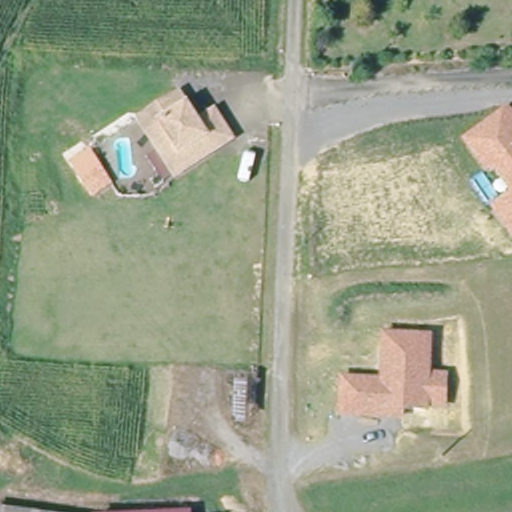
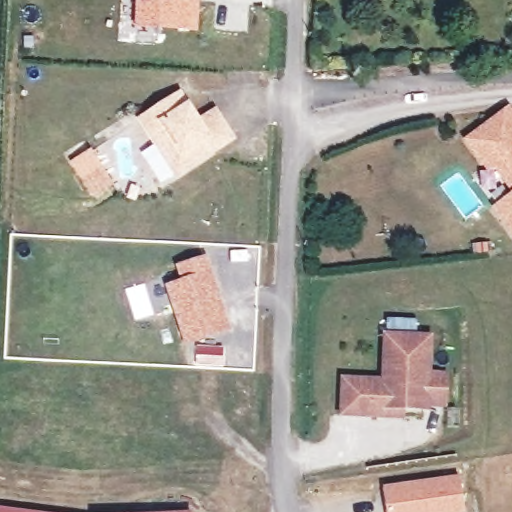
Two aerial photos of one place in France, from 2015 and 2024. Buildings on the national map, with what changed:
new [(197,30),(133,26),(135,0),(198,0),(197,30)]
unchanged [(161,157),(139,130),(171,102),(194,129),(206,115),(225,139),(211,150),(190,168),(179,178),(161,157)]
unchanged [(511,192),(494,167),(486,174),(462,140),(509,105),(512,109),(512,237),(491,207),(511,192)]
unchanged [(113,186),(93,198),(69,162),(91,150),(113,186)]
new [(232,329),(183,346),(163,285),(177,280),(174,266),(207,255),(232,329)]
unchanged [(386,414),(343,410),(345,376),(383,380),(386,335),(430,339),(428,375),(444,376),(442,405),(426,404),(425,408),(401,406),(400,415),(386,414)]
new [(386,512),(381,486),(458,475),(464,512),(386,512)]

